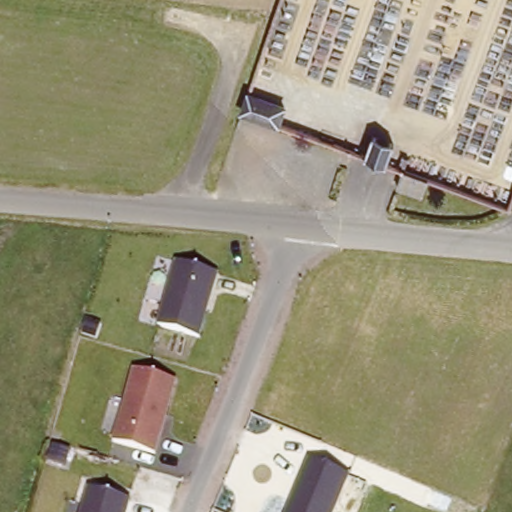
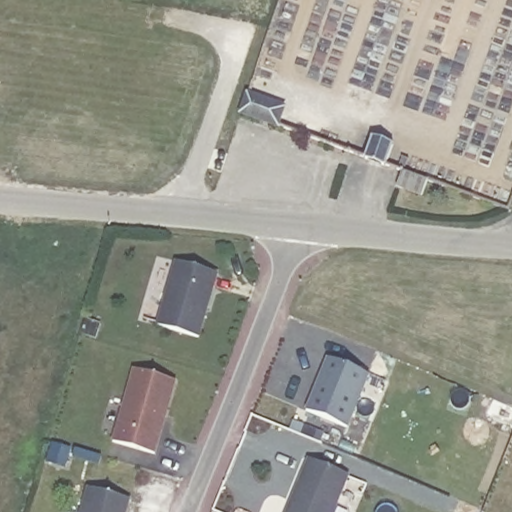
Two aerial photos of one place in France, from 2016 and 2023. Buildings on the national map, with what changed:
unchanged [(282,110),(276,126),(241,114),(247,96),(282,110)]
unchanged [(372,140),(392,147),(385,167),(365,160),(372,140)]
unchanged [(425,182),(418,199),(395,190),(401,174),(425,182)]
unchanged [(220,271),(200,339),(155,323),(175,257),(220,271)]
new [(308,410),(327,358),(370,374),(351,427),(308,410)]
unchanged [(179,379),(159,455),(112,439),(132,366),(179,379)]
unchanged [(348,473),(334,512),(286,512),(308,457),(348,473)]
unchanged [(132,496),(128,512),(79,512),(87,483),(132,496)]

